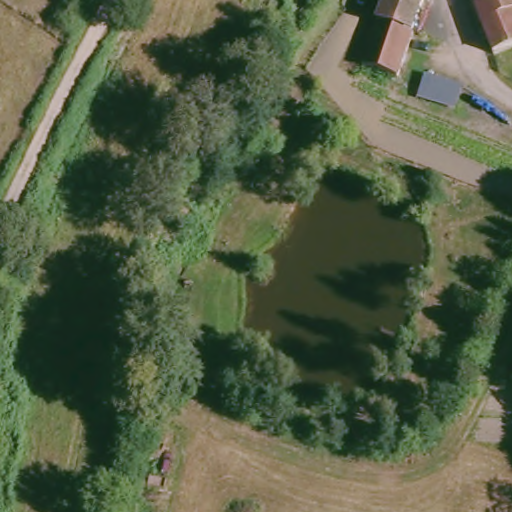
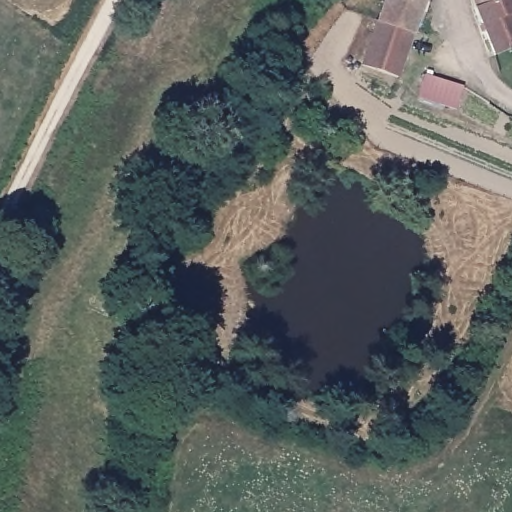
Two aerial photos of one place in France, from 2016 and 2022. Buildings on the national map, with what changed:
unchanged [(370,15),(375,0),(414,0),(405,28),(370,15)]
unchanged [(471,0),(493,0),(474,6),(471,0)]
unchanged [(512,0),(512,13),(512,45),(490,52),(474,6),(493,0),(512,0)]
unchanged [(391,73),(355,60),(370,15),(405,28),(391,73)]

